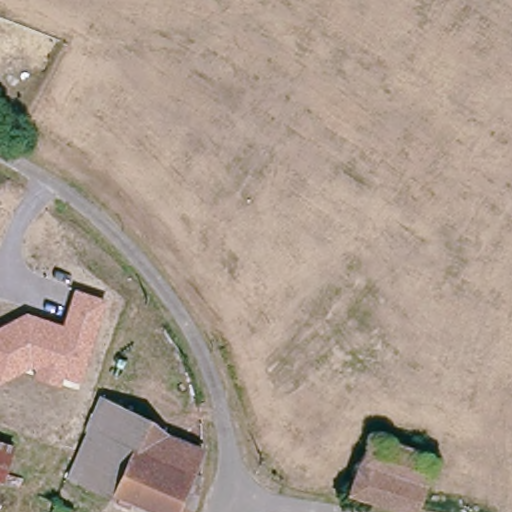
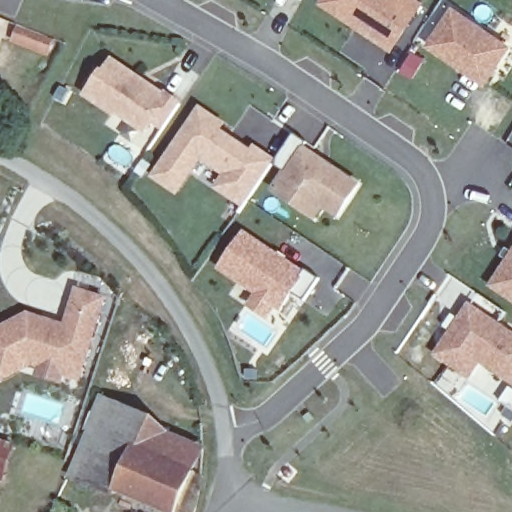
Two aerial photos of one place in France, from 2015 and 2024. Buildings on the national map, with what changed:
new [(393,50),(321,4),(323,0),(419,0),(424,3),(393,50)]
new [(512,46),(485,86),(424,46),(452,4),(512,46)]
new [(17,26),(51,38),(45,54),(12,41),(17,26)]
new [(104,79),(112,66),(139,84),(144,87),(164,101),(166,99),(181,109),(166,130),(153,121),(145,133),(115,112),(113,116),(87,99),(102,77),(104,79)]
new [(226,124),(223,129),(252,149),(255,144),(277,159),(295,135),(308,143),(304,148),(288,171),(274,161),(243,207),(214,189),(223,176),(201,163),(177,197),(150,178),(199,104),(226,124)]
new [(337,219),(323,210),(315,220),(272,192),(304,148),(360,186),(337,219)]
new [(222,273),(245,237),(278,259),(281,255),(289,260),(286,264),(304,276),(307,272),(321,281),(304,305),(291,296),(281,312),(278,310),(268,325),(247,311),(257,296),(222,273)]
new [(512,254),(512,302),(489,287),(512,254)]
unchanged [(0,385),(0,324),(29,309),(64,320),(76,287),(108,296),(83,382),(64,376),(62,384),(36,377),(38,367),(31,365),(0,385)]
new [(512,336),(512,382),(481,361),(471,377),(439,356),(471,308),(512,336)]
unchanged [(192,512),(171,512),(168,511),(112,491),(82,487),(58,479),(83,406),(105,415),(133,430),(153,437),(192,451),(186,468),(199,471),(198,496),(194,510),(192,512)]
demolished [(357,476),(368,434),(430,455),(413,509),(352,489),(357,476)]
unchanged [(12,447),(1,482),(0,482),(0,443),(12,447)]

